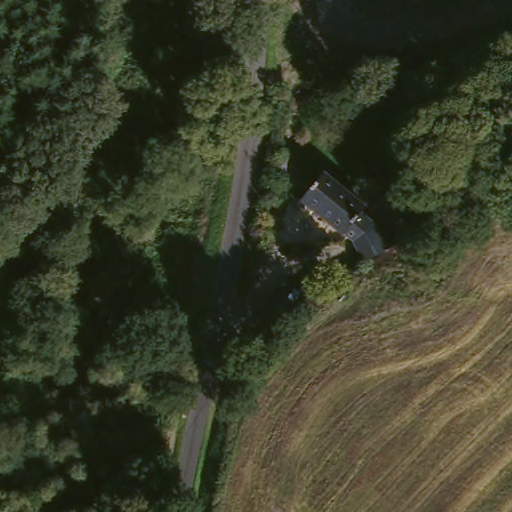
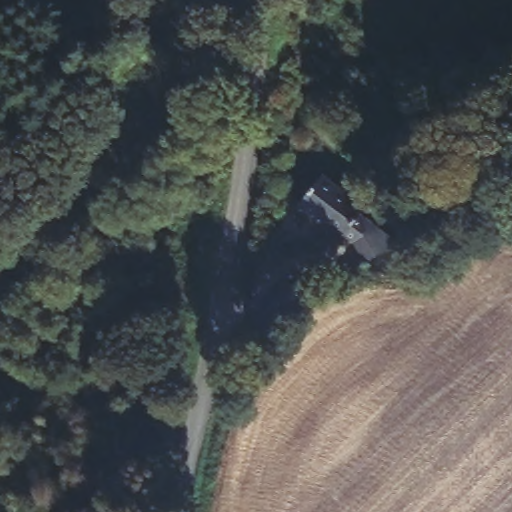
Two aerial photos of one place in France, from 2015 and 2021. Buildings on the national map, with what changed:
unchanged [(393,239),(382,245),(358,257),(349,237),(340,229),(338,231),(298,197),(322,169),(361,203),(357,208),(364,214),(372,221),(393,239)]
unchanged [(299,298),(270,330),(256,317),(284,285),(299,298)]

